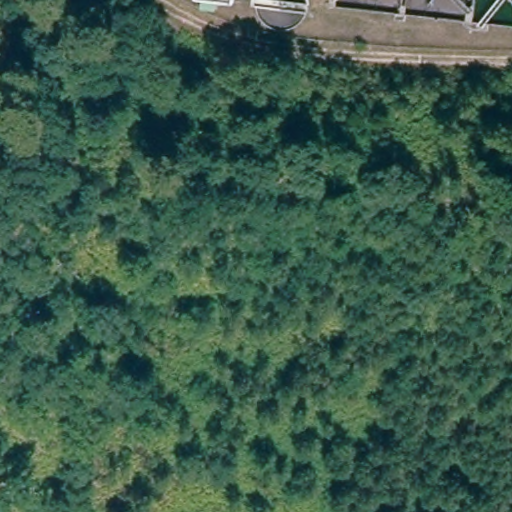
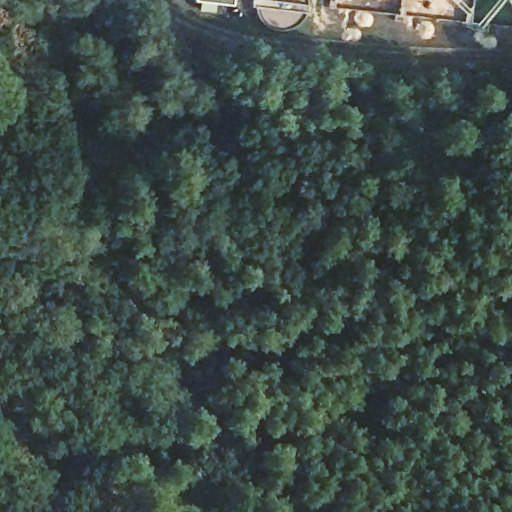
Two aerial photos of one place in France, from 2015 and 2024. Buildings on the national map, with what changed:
unchanged [(194,0),(237,0),(237,5),(194,0)]

